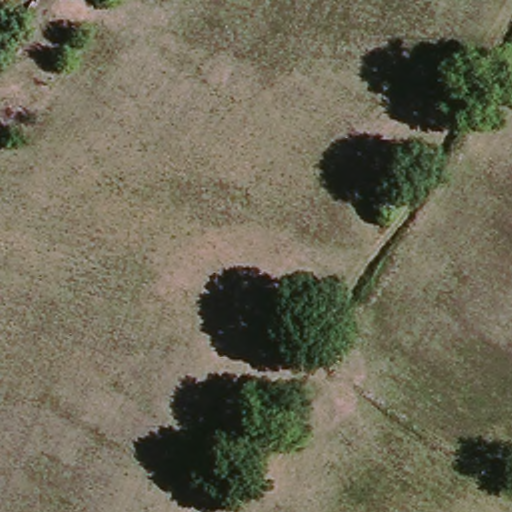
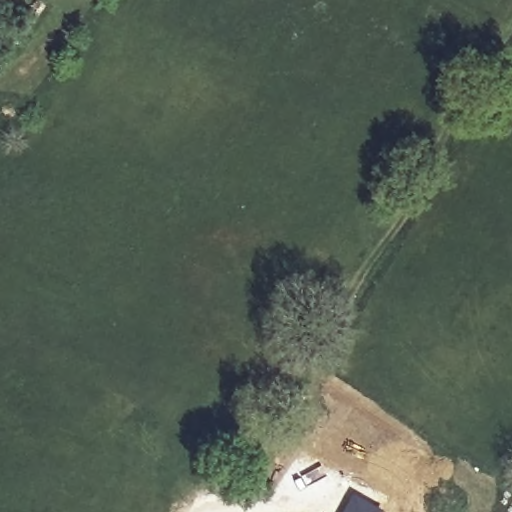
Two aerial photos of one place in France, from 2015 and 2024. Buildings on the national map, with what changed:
new [(385,511),(384,512),(342,512),(354,492),(385,511)]

